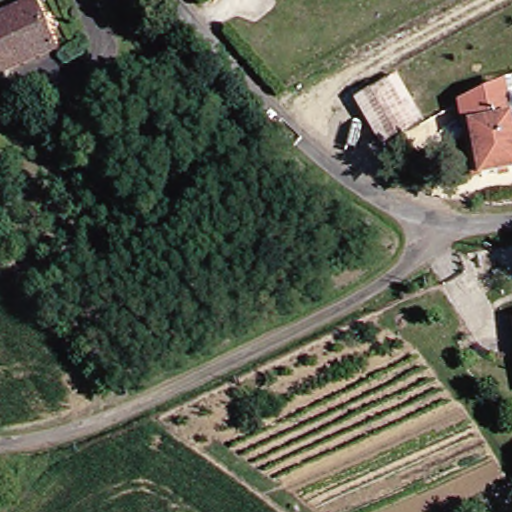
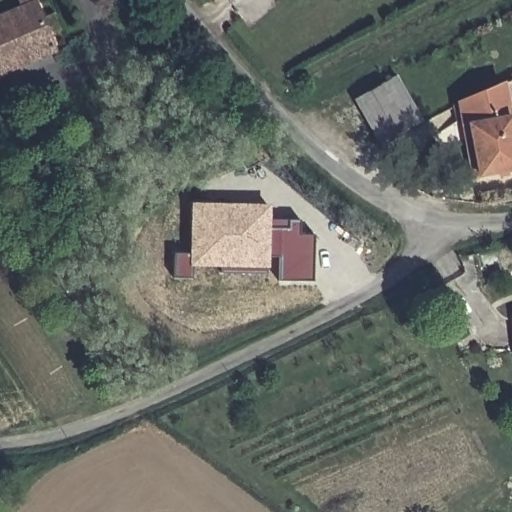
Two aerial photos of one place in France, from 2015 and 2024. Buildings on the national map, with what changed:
unchanged [(18,6),(15,0),(30,0),(30,1),(51,51),(0,73),(0,14),(18,6)]
unchanged [(392,76),(418,120),(378,143),(352,100),(392,76)]
unchanged [(461,100),(499,84),(512,150),(512,169),(476,176),(470,177),(456,103),(461,100)]
new [(270,221),(300,221),(299,236),(314,235),(314,282),(280,281),(281,255),(270,256),(269,272),(221,272),(222,267),(194,267),(193,280),(173,279),(174,252),(190,253),(190,203),(270,206),(270,221)]
unchanged [(512,317),(512,349),(508,318),(512,317)]

